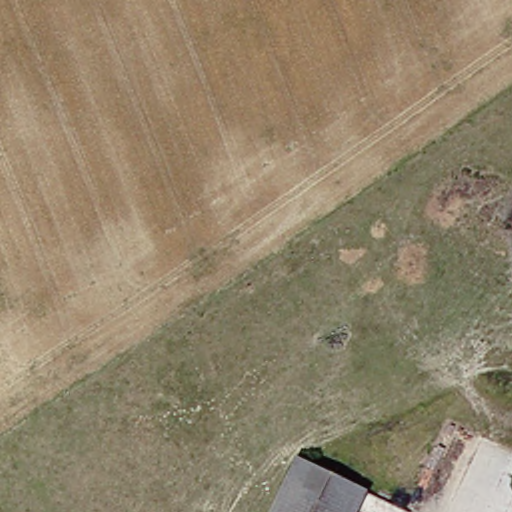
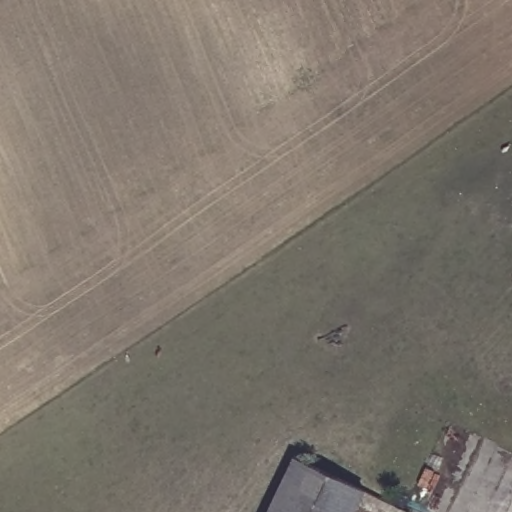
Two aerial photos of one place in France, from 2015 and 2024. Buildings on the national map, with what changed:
unchanged [(365,490),(355,512),(271,512),(293,460),(365,490)]

